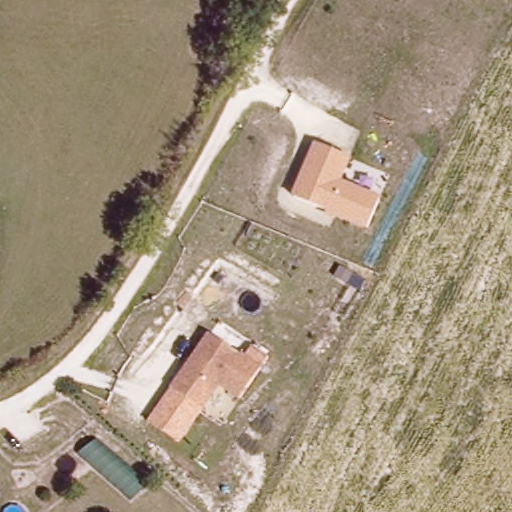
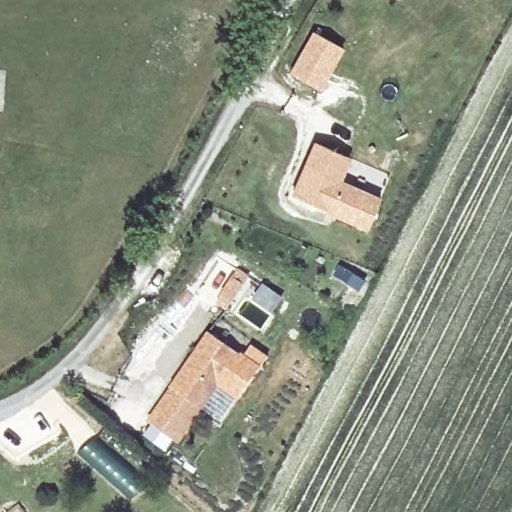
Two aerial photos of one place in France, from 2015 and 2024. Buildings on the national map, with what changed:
new [(344,48),(321,90),(290,73),(312,32),(344,48)]
unchanged [(315,138),(353,154),(343,178),(382,194),(367,229),(325,212),(327,205),(291,193),(315,138)]
unchanged [(207,330),(261,364),(240,397),(220,386),(205,407),(171,387),(207,330)]
unchanged [(179,444),(146,423),(171,387),(205,407),(179,444)]

